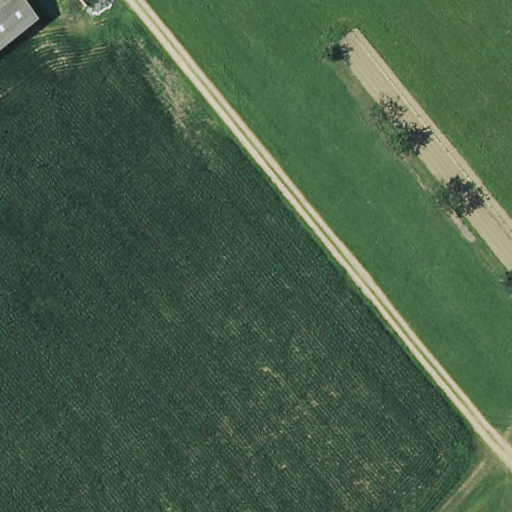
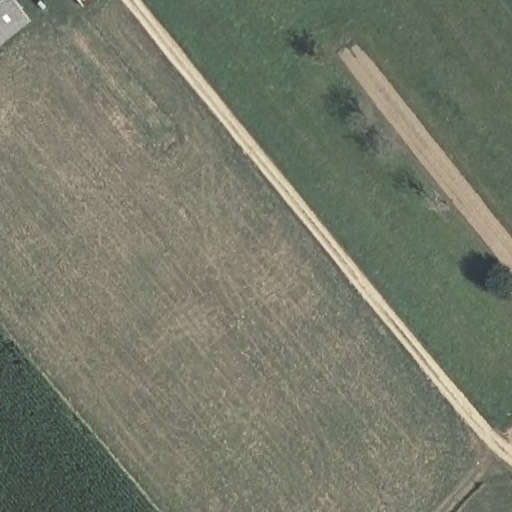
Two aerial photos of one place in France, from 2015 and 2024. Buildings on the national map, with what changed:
unchanged [(0,43),(0,0),(15,0),(30,20),(0,43)]

